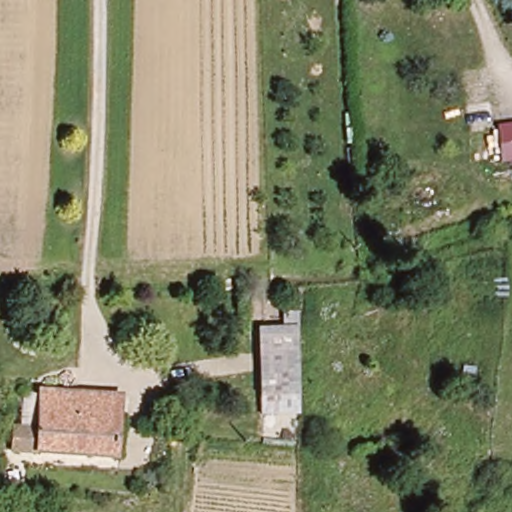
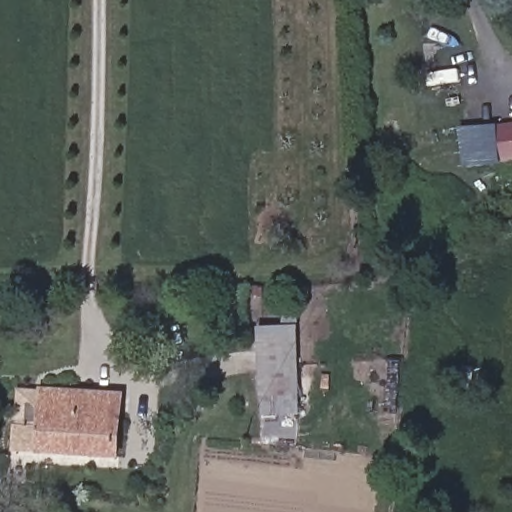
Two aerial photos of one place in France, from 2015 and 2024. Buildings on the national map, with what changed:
new [(465,168),(458,128),(506,128),(507,158),(465,168)]
unchanged [(512,128),(512,158),(507,158),(506,128),(512,128)]
unchanged [(260,399),(258,328),(283,326),(283,312),(300,312),(300,394),(260,399)]
unchanged [(16,446),(17,419),(36,420),(39,384),(121,391),(117,454),(16,446)]

